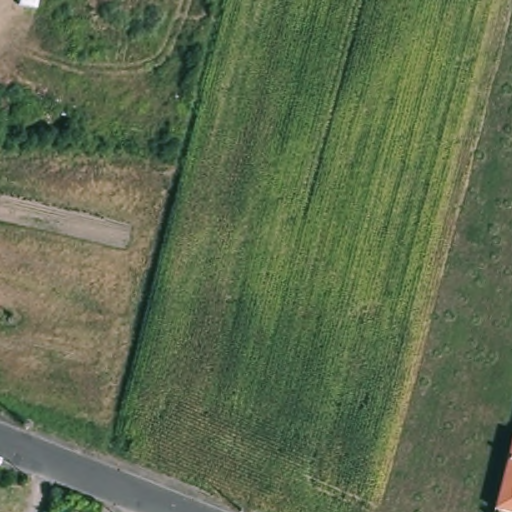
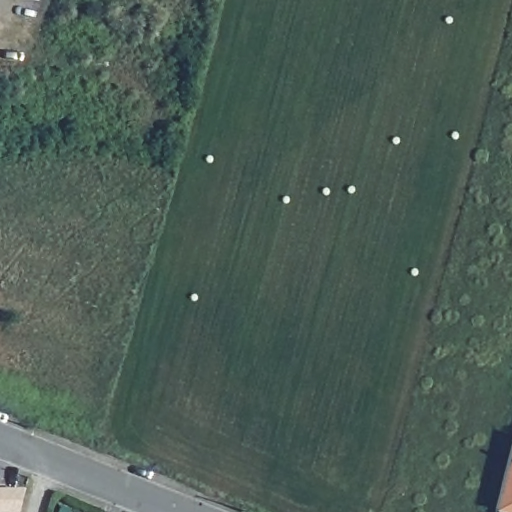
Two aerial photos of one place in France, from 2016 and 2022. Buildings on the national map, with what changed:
unchanged [(512,447),(512,512),(496,512),(504,477),(512,447)]
new [(1,488),(1,494),(21,494),(16,512),(0,512),(0,488),(1,488)]

